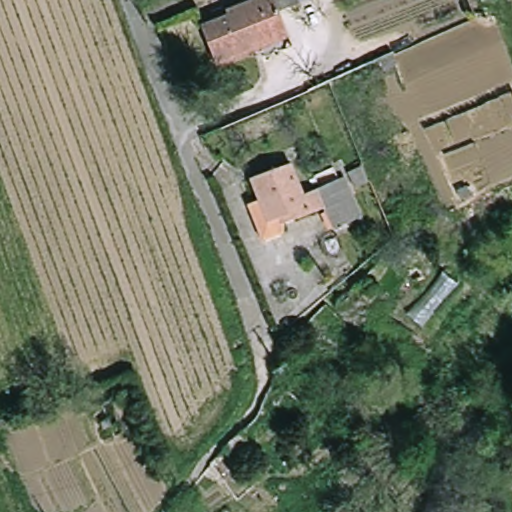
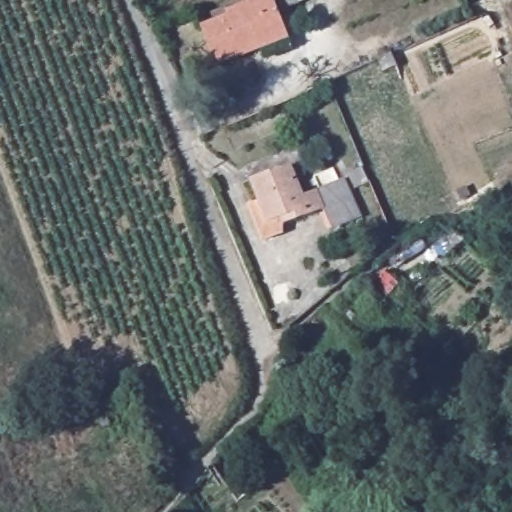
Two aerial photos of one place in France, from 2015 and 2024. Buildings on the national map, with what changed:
unchanged [(294,36),(223,65),(207,28),(234,17),(232,12),(263,0),(312,0),(303,3),(284,12),(294,36)]
unchanged [(383,72),(377,58),(390,52),(396,67),(383,72)]
unchanged [(324,189),(319,176),(337,168),(343,181),(349,178),(366,217),(337,231),(328,209),(288,224),(287,234),(266,242),(252,205),(263,201),(255,180),(295,165),(307,197),(324,189)]
unchanged [(376,181),(359,188),(352,172),(369,165),(376,181)]
unchanged [(469,195),(462,199),(458,190),(465,187),(469,195)]
unchanged [(365,281),(374,293),(366,298),(357,286),(365,281)]
unchanged [(344,370),(339,365),(344,360),(349,365),(344,370)]
unchanged [(120,385),(133,375),(155,427),(140,438),(120,385)]
unchanged [(235,458),(229,458),(222,449),(232,438),(239,432),(247,442),(240,448),(243,452),(235,458)]
unchanged [(203,473),(208,467),(213,474),(209,478),(203,473)]

